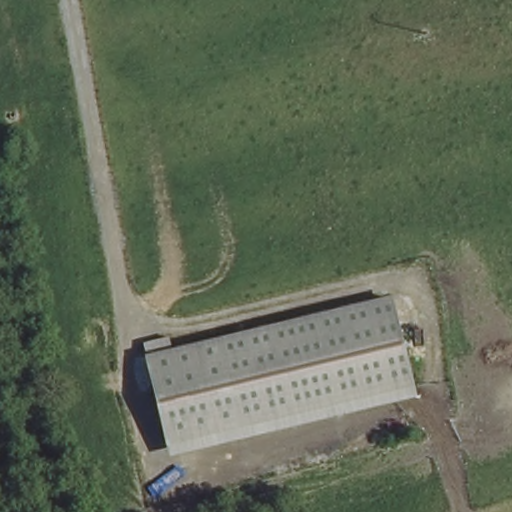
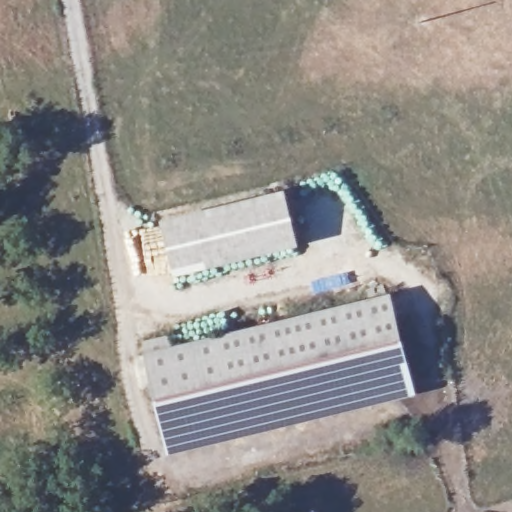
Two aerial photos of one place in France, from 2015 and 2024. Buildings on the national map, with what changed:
new [(286,188),(300,247),(229,265),(173,276),(159,220),(286,188)]
unchanged [(417,395),(171,450),(144,341),(168,335),(171,347),(391,293),(417,395)]

